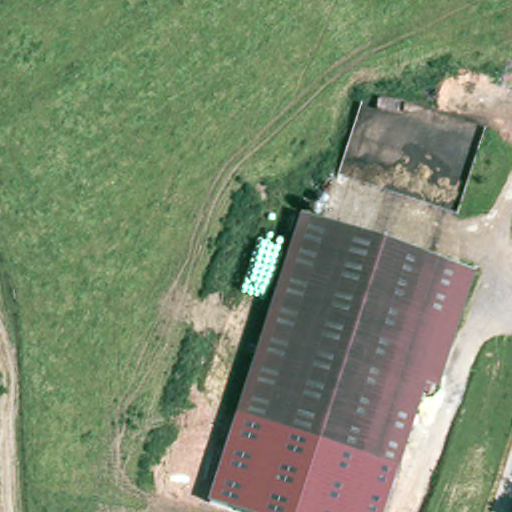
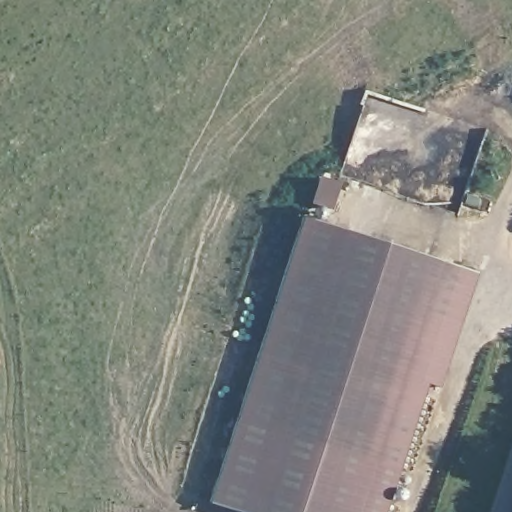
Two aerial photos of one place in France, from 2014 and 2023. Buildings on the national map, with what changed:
unchanged [(420,385),(393,473),(376,467),(233,421),(296,223),(429,263),(469,275),(434,389),(420,385)]
unchanged [(376,467),(393,473),(380,512),(234,512),(208,504),(233,421),(376,467)]

